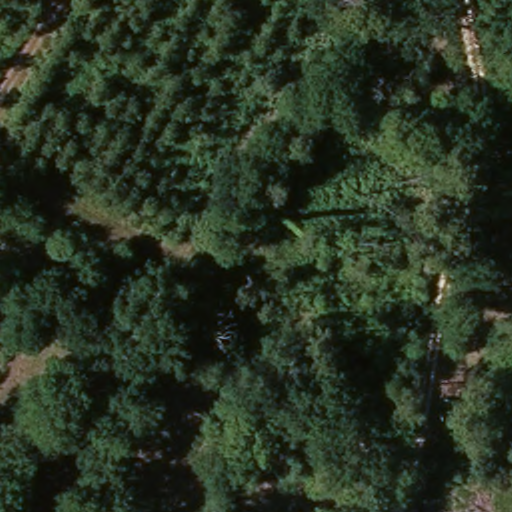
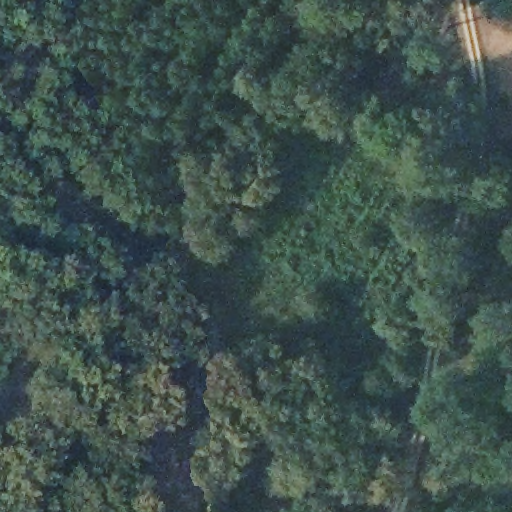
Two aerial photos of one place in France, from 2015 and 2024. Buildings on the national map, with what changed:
[]

